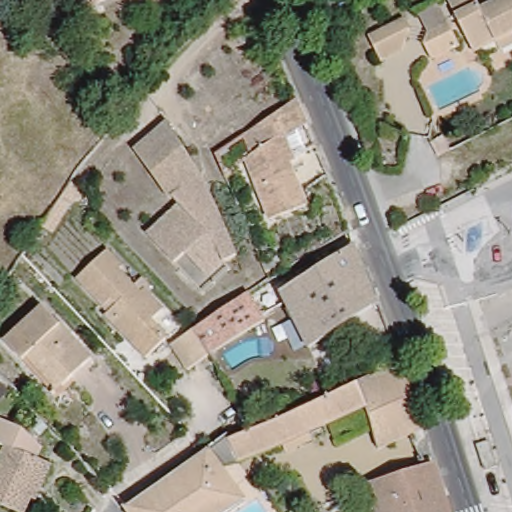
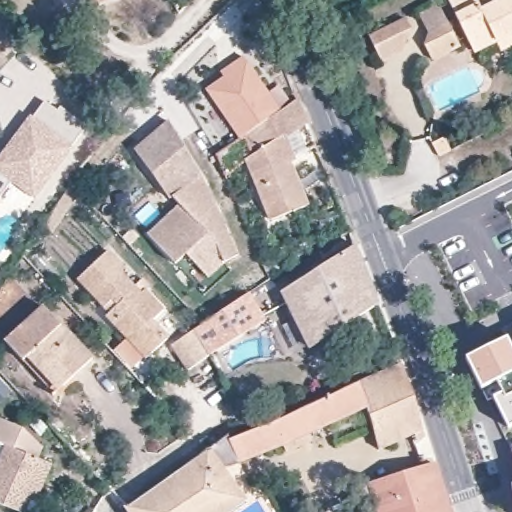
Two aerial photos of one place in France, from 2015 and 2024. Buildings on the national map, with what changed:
unchanged [(92,0),(105,0),(93,4),(92,0)]
unchanged [(498,44),(475,54),(450,4),(459,0),(477,0),(483,14),(512,0),(512,50),(503,54),(498,44)]
demolished [(250,6),(259,14),(243,30),(234,21),(250,6)]
unchanged [(410,13),(415,24),(410,46),(390,55),(377,29),(410,13)]
unchanged [(456,45),(429,59),(420,44),(425,30),(443,22),(456,45)]
new [(205,89),(223,78),(220,72),(243,57),(278,107),(243,131),(246,136),(252,150),(252,151),(247,154),(249,159),(226,178),(215,154),(240,139),(205,89)]
unchanged [(315,139),(290,159),(305,203),(271,214),(262,192),(247,154),(252,151),(243,131),(297,94),(315,139)]
new [(30,116),(32,118),(46,100),(85,129),(35,198),(11,183),(0,198),(0,154),(30,116)]
unchanged [(241,257),(206,279),(190,252),(175,264),(143,237),(174,206),(131,153),(169,119),(241,257)]
unchanged [(73,200),(63,215),(53,208),(65,192),(73,200)]
unchanged [(315,342),(286,287),(360,241),(382,299),(315,342)]
unchanged [(126,335),(131,330),(112,309),(116,305),(112,299),(110,302),(83,274),(112,245),(128,262),(124,265),(145,288),(150,284),(167,305),(158,315),(173,332),(156,350),(146,359),(126,335)]
unchanged [(176,340),(198,325),(207,319),(252,289),(269,316),(213,350),(192,364),(176,340)]
unchanged [(27,361),(10,342),(48,308),(96,359),(68,384),(57,394),(27,361)]
new [(511,348),(512,348),(512,426),(507,428),(491,398),(502,393),(496,383),(481,389),(466,358),(506,339),(511,348)]
unchanged [(207,451),(227,435),(230,440),(278,419),(300,410),(331,396),(378,374),(400,364),(424,431),(380,449),(365,409),(320,430),(321,437),(288,452),(284,446),(241,462),(219,467),(207,451)]
unchanged [(30,504),(26,512),(8,512),(0,508),(0,463),(6,449),(0,447),(0,425),(0,424),(23,434),(42,453),(37,463),(52,469),(45,487),(36,506),(30,504)]
demolished [(487,440),(495,466),(484,470),(476,443),(487,440)]
unchanged [(235,512),(130,512),(127,508),(206,453),(207,451),(219,467),(242,499),(246,504),(235,512)]
unchanged [(357,490),(372,484),(440,463),(450,493),(456,512),(365,512),(357,490)]

